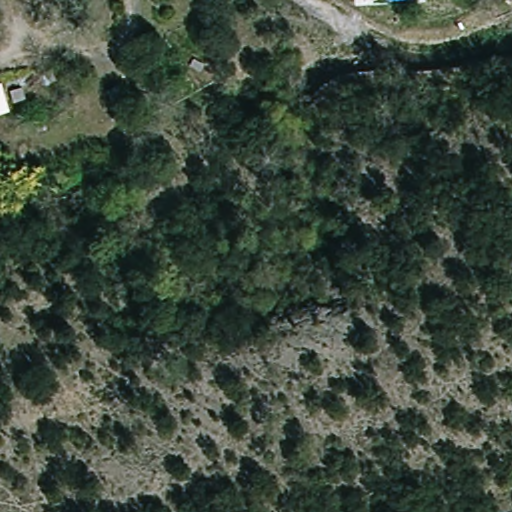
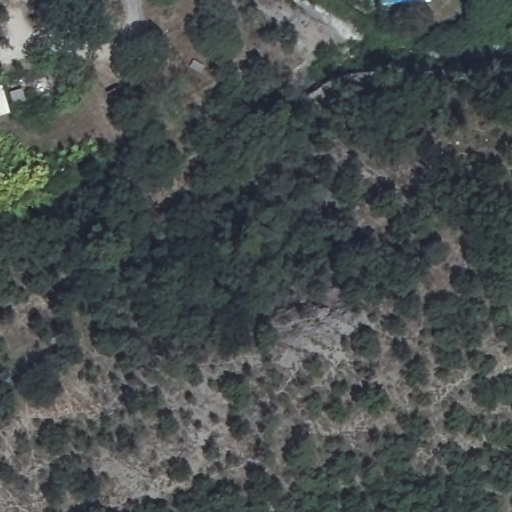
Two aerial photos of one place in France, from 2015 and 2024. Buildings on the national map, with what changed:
[]

